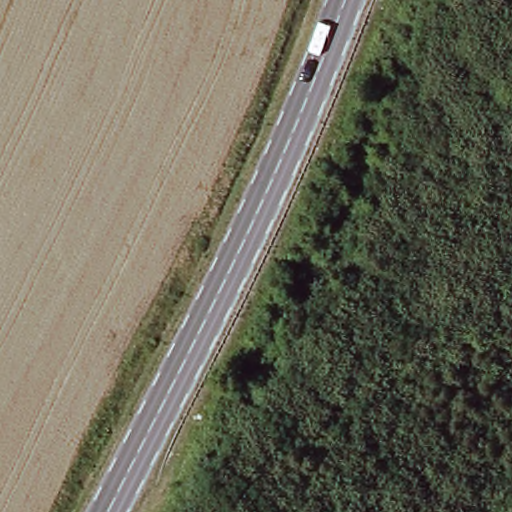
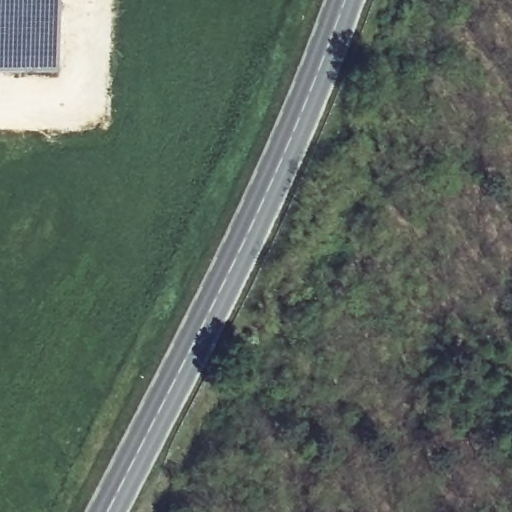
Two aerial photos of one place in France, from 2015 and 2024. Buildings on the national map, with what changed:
new [(55,74),(0,74),(0,0),(56,0),(55,74)]

